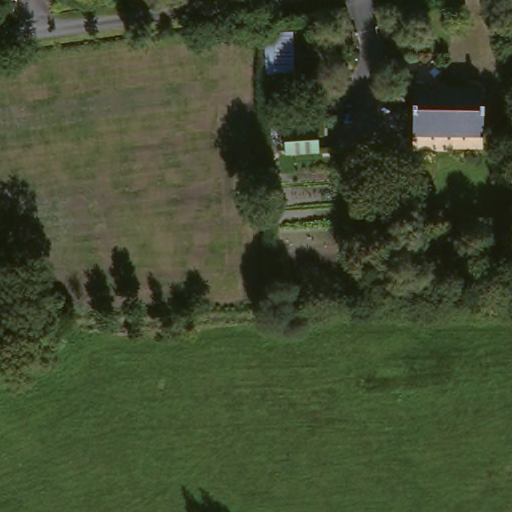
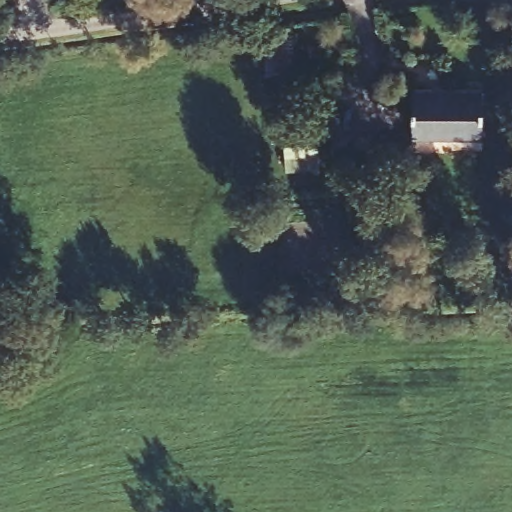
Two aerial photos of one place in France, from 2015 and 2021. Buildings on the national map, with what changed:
unchanged [(259,40),(275,41),(277,32),(289,33),(290,81),(260,83),(259,40)]
unchanged [(409,96),(478,92),(481,135),(412,140),(409,96)]

